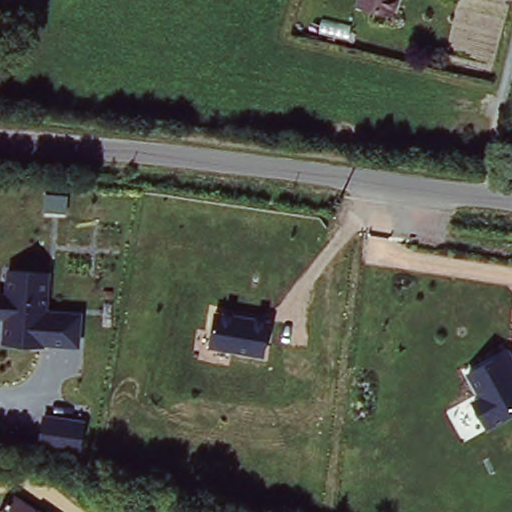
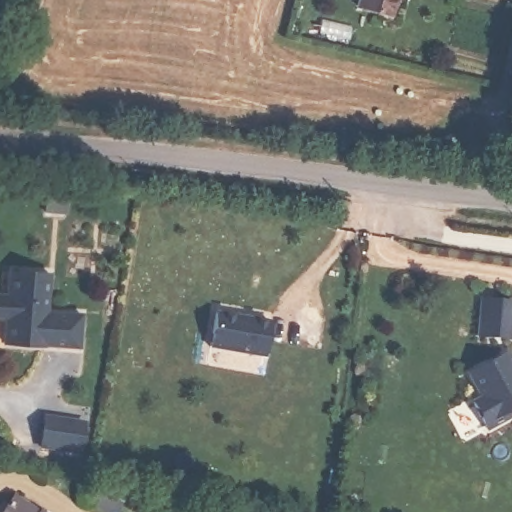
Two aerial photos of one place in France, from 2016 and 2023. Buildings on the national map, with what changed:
unchanged [(391,15),(357,5),(359,0),(395,0),(391,15)]
unchanged [(1,344),(3,318),(0,318),(0,293),(6,293),(7,268),(50,271),(49,310),(80,311),(79,346),(1,344)]
new [(512,321),(510,337),(479,335),(482,296),(512,298),(512,321)]
unchanged [(266,355),(210,348),(214,314),(270,323),(266,355)]
unchanged [(511,414),(486,427),(473,400),(481,395),(467,372),(506,350),(512,360),(512,403),(508,405),(511,414)]
unchanged [(39,453),(42,413),(86,418),(81,459),(39,453)]
unchanged [(51,512),(3,512),(15,491),(51,512)]

